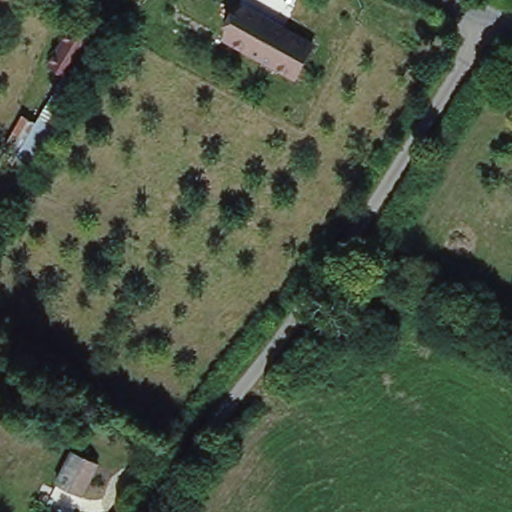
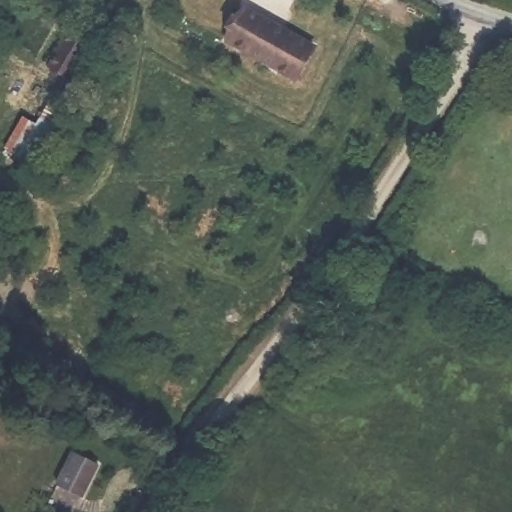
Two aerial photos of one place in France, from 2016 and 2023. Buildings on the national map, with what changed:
unchanged [(295,86),(219,42),(242,1),(315,44),(295,86)]
unchanged [(87,29),(86,32),(94,37),(76,68),(64,62),(49,53),(69,19),(87,29)]
unchanged [(76,68),(83,72),(36,156),(17,145),(64,62),(76,68)]
unchanged [(83,444),(101,452),(82,496),(81,497),(65,489),(55,484),(54,484),(74,440),(83,444)]

